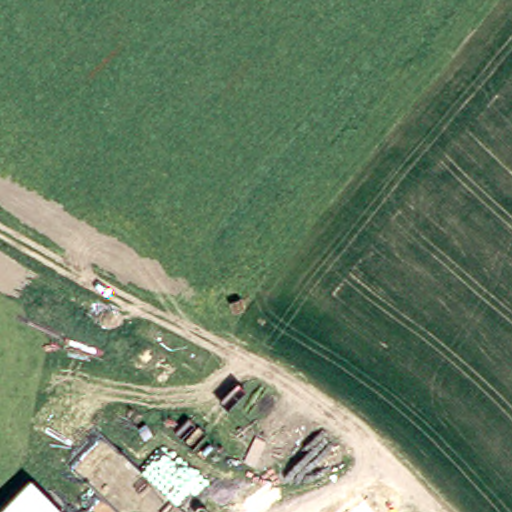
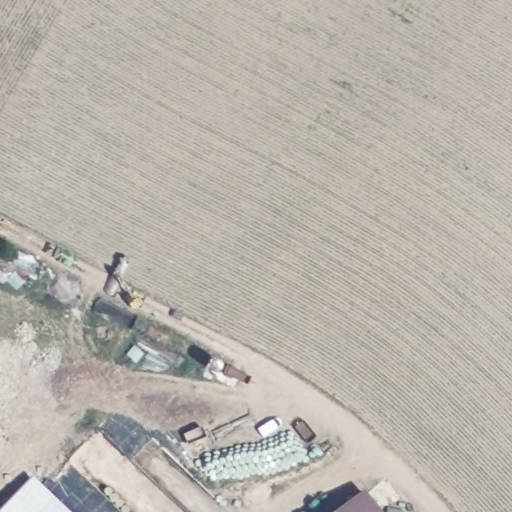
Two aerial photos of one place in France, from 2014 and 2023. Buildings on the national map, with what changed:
unchanged [(13,512),(37,488),(63,512),(13,512)]
new [(386,512),(336,512),(367,488),(386,512)]

